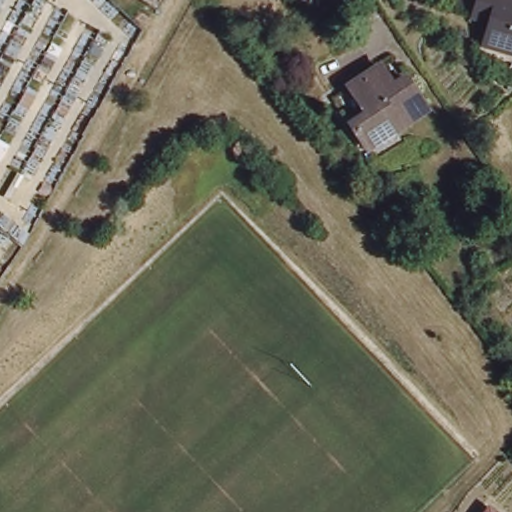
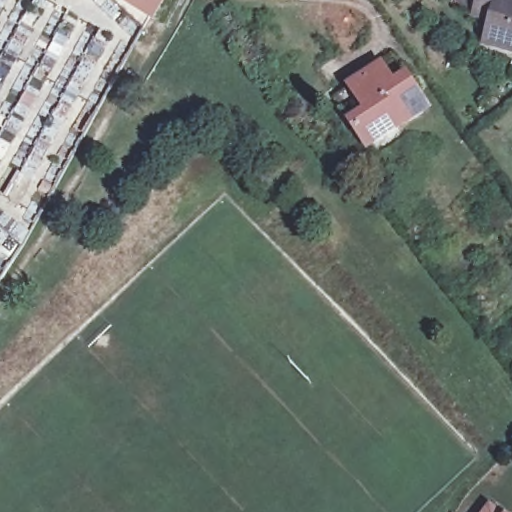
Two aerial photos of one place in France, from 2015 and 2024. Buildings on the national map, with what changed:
new [(116,2),(117,0),(166,0),(153,22),(116,2)]
demolished [(146,0),(167,0),(162,9),(146,0)]
unchanged [(482,0),(512,0),(512,55),(486,47),(493,24),(476,19),(482,0)]
unchanged [(393,84),(406,75),(427,106),(367,145),(351,121),(368,110),(351,84),(381,65),(393,84)]
unchanged [(490,505),(499,512),(485,512),(490,505)]

